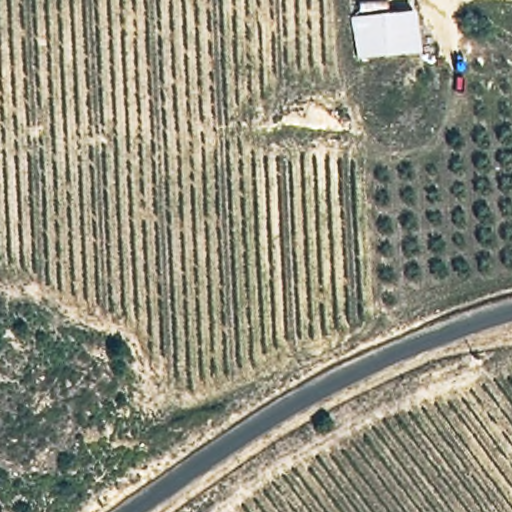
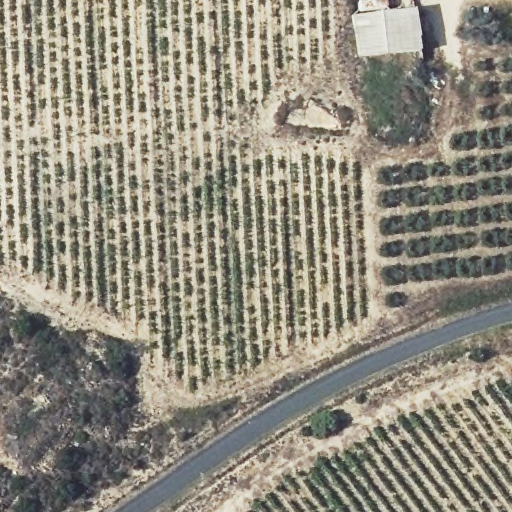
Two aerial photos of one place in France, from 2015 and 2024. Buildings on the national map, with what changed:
unchanged [(423,52),(356,57),(353,20),(362,19),(362,7),(388,5),(390,14),(420,13),(420,15),(424,47),(425,51),(423,52)]

